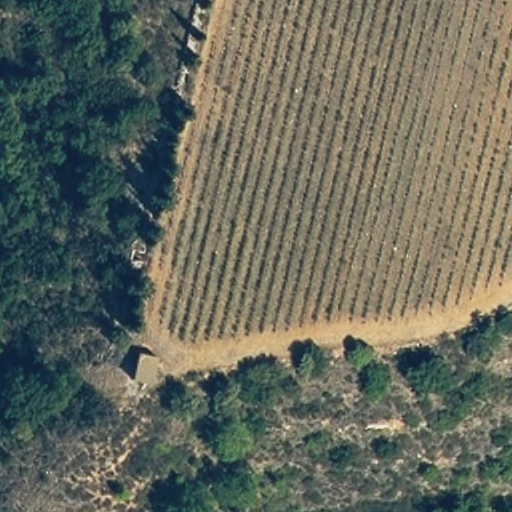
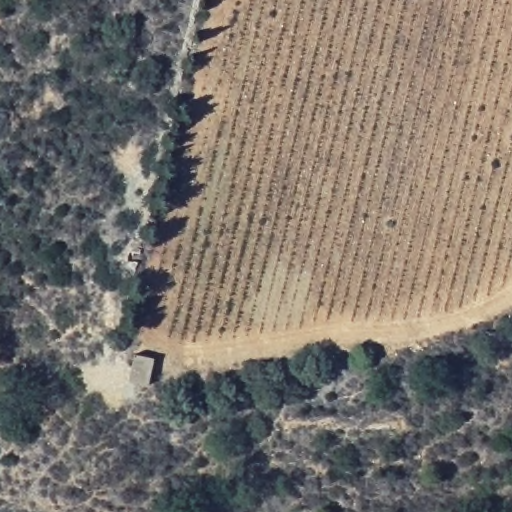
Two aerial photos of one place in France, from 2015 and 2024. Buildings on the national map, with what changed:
unchanged [(155,361),(150,383),(129,381),(133,354),(155,361)]

